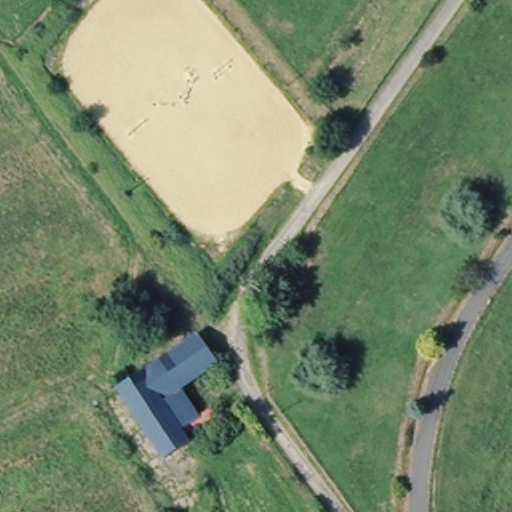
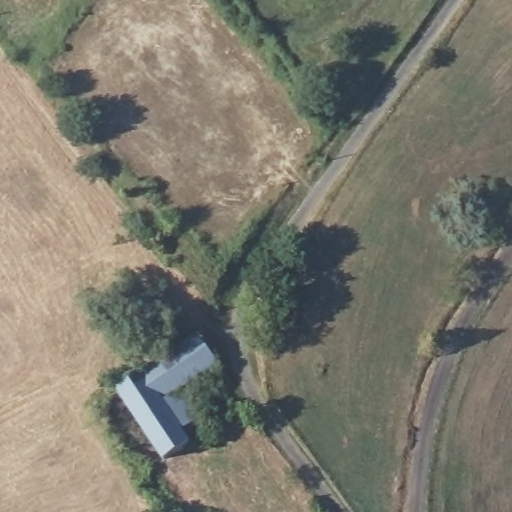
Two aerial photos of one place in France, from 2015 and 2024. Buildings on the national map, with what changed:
unchanged [(220,370),(185,394),(201,420),(209,413),(219,428),(163,464),(118,394),(198,341),(220,370)]

